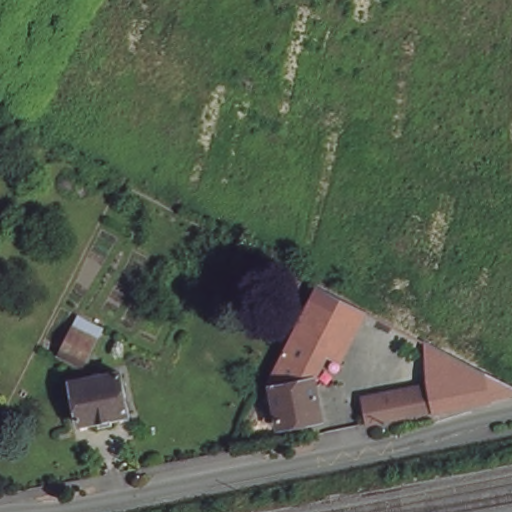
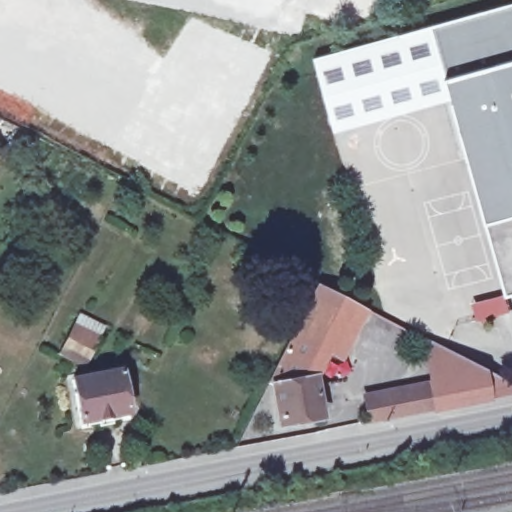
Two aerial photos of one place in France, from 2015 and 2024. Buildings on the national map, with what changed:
new [(313,58),(512,4),(512,293),(504,295),(483,221),(449,100),(333,131),(313,58)]
unchanged [(363,314),(336,364),(323,359),(322,359),(288,340),(314,288),(363,314)]
unchanged [(97,326),(103,330),(83,366),(60,353),(81,317),(97,326)]
unchanged [(512,385),(512,396),(371,423),(368,402),(432,390),(421,335),(512,385)]
unchanged [(288,340),(322,359),(309,381),(316,420),(274,428),(267,381),(288,340)]
unchanged [(125,400),(128,411),(81,421),(73,381),(118,371),(125,400)]

